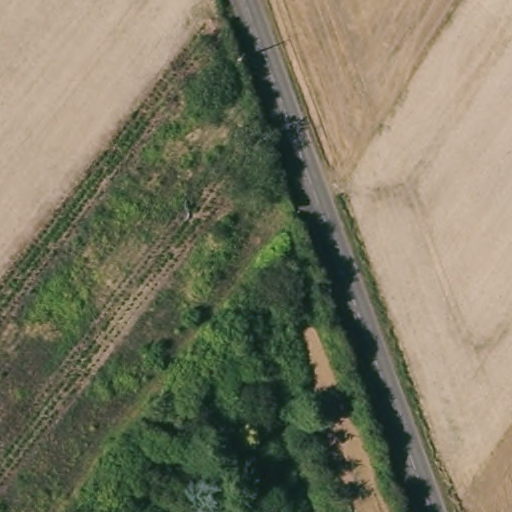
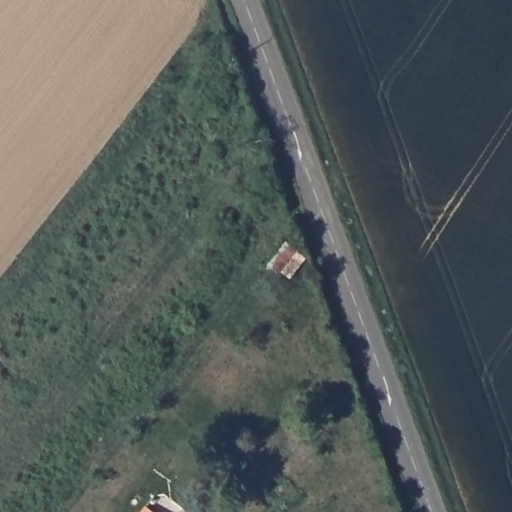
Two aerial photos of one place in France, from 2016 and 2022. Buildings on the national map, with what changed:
unchanged [(264,266),(283,243),(300,255),(278,280),(264,266)]

